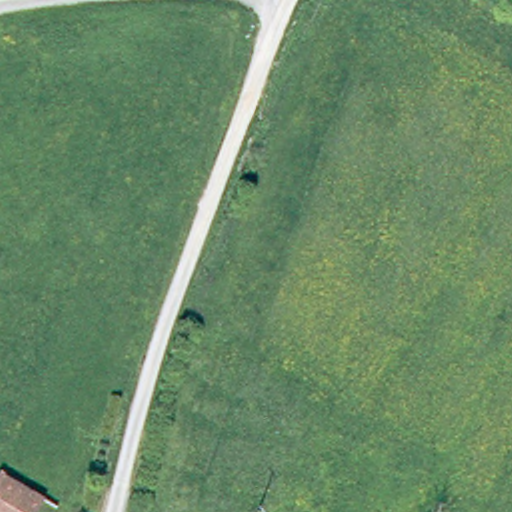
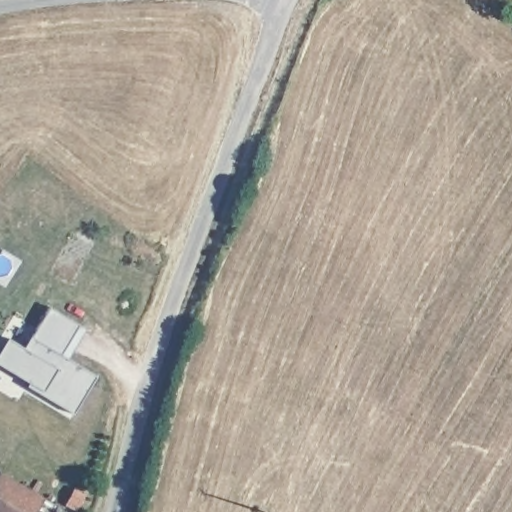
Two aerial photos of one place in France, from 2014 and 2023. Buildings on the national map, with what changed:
new [(95,375),(73,411),(28,385),(29,381),(0,364),(0,352),(8,337),(24,347),(31,336),(49,306),(86,328),(68,358),(95,375)]
unchanged [(36,512),(0,512),(0,475),(5,466),(49,493),(36,512)]

